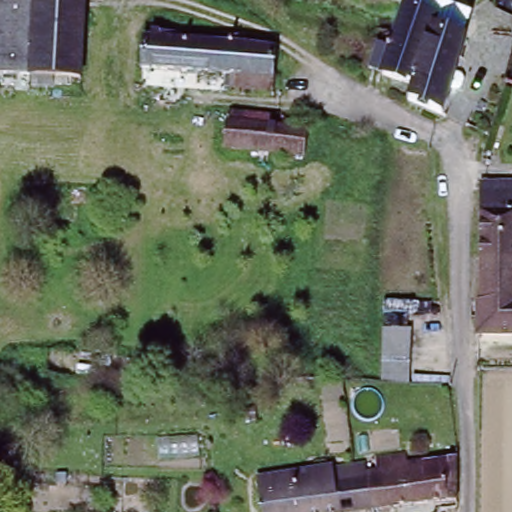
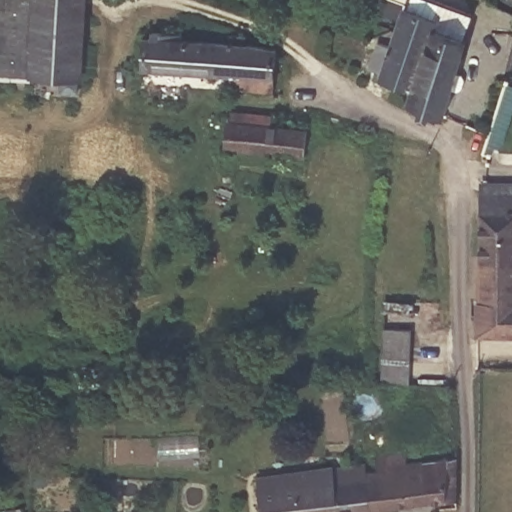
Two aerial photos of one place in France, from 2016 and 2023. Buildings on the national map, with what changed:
unchanged [(31,71),(0,68),(0,0),(36,0),(36,4),(31,71)]
unchanged [(36,4),(36,0),(87,0),(86,7),(36,4)]
unchanged [(451,99),(414,86),(417,75),(386,64),(386,61),(375,57),(384,25),(397,29),(405,0),(413,0),(442,9),(445,0),(475,0),(469,21),(474,24),(451,99)]
unchanged [(79,82),(52,80),(51,85),(30,84),(31,71),(36,4),(86,7),(79,82)]
unchanged [(245,36),(243,44),(281,53),(276,91),(234,87),(235,76),(141,66),(143,34),(227,43),(227,34),(245,36)]
unchanged [(228,145),(232,116),(314,122),(310,152),(228,145)]
unchanged [(481,267),(481,204),(483,191),(484,181),(512,182),(512,267),(481,267)]
unchanged [(481,336),(481,267),(512,267),(512,337),(481,336)]
unchanged [(412,360),(411,380),(384,380),(386,358),(387,324),(413,325),(412,360)]
unchanged [(369,506),(329,512),(260,512),(256,486),(293,480),(292,472),(308,469),(307,453),(341,449),(359,447),(363,465),(369,506)]
unchanged [(454,494),(369,506),(363,465),(375,464),(374,451),(404,447),(407,458),(452,451),(454,494)]

